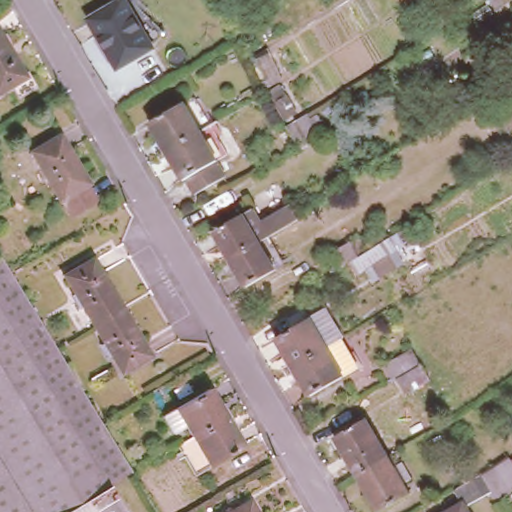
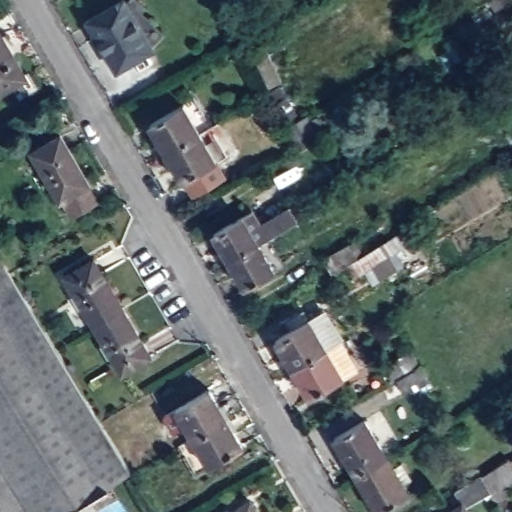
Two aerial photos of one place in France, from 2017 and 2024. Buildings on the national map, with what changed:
unchanged [(130,4),(143,28),(109,49),(95,25),(130,4)]
unchanged [(158,53),(123,73),(109,49),(143,28),(158,53)]
unchanged [(0,62),(0,35),(12,55),(0,62)]
unchanged [(0,97),(0,62),(12,55),(27,80),(0,97)]
unchanged [(150,127),(185,108),(195,102),(212,131),(201,137),(167,157),(150,127)]
unchanged [(308,115),(322,138),(301,151),(287,128),(308,115)]
unchanged [(217,166),(226,181),(195,199),(186,184),(183,185),(167,157),(201,137),(212,131),(228,159),(217,166)]
unchanged [(100,206),(75,221),(65,204),(63,205),(48,180),(35,157),(63,140),(76,163),(92,189),(90,189),(100,206)]
unchanged [(251,217),(260,232),(272,225),(271,223),(288,213),(297,229),(266,247),(255,253),(226,269),(210,241),(251,217)]
unchanged [(386,282),(378,268),(372,272),(364,277),(355,263),(338,272),(331,259),(356,244),(364,258),(396,238),(405,232),(413,245),(405,251),(398,255),(407,269),(386,282)]
unchanged [(255,253),(266,247),(281,272),(270,279),(242,295),(226,269),(255,253)]
unchanged [(15,277),(61,352),(72,371),(71,372),(82,390),(96,413),(0,472),(0,263),(5,260),(15,277)]
unchanged [(93,262),(123,311),(94,329),(65,279),(93,262)]
unchanged [(277,338),(327,309),(345,338),(342,340),(295,367),(277,338)]
unchanged [(152,360),(123,377),(94,329),(123,311),(152,360)]
unchanged [(342,340),(359,368),(311,395),(295,367),(342,340)]
unchanged [(391,373),(383,359),(403,347),(411,343),(420,357),(420,356),(426,367),(428,370),(406,383),(398,369),(391,373)]
unchanged [(180,430),(170,413),(215,388),(231,416),(198,437),(191,424),(180,430)]
unchanged [(135,477),(76,512),(0,512),(0,472),(96,413),(135,477)]
unchanged [(201,475),(183,446),(198,437),(231,416),(249,446),(201,475)]
unchanged [(335,441),(366,423),(389,462),(357,480),(335,441)]
unchanged [(386,512),(376,512),(357,480),(389,462),(410,498),(386,512)]
unchanged [(460,496),(451,481),(477,467),(486,481),(487,481),(496,497),(470,512),(462,512),(468,508),(460,496)]
unchanged [(258,512),(232,512),(251,500),(258,512)]

